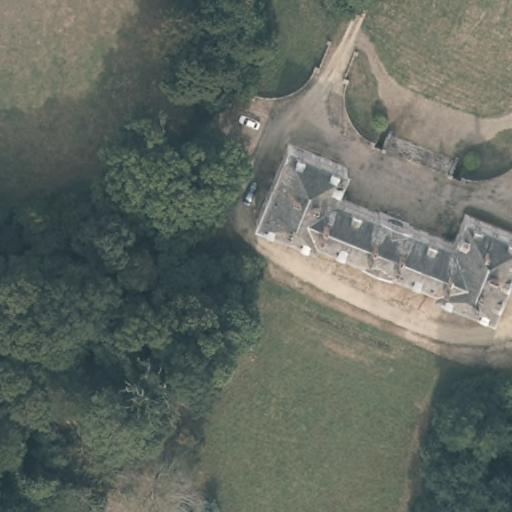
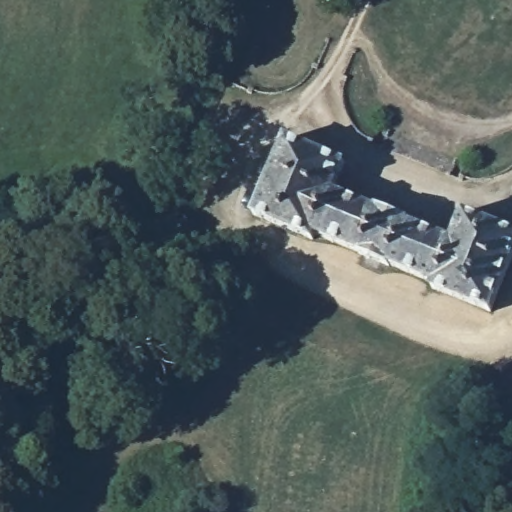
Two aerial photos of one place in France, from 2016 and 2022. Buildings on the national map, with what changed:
unchanged [(512,246),(512,263),(486,322),(424,295),(427,287),(319,241),(316,250),(251,221),(282,144),(342,174),(332,199),(439,245),(450,220),(512,246)]

